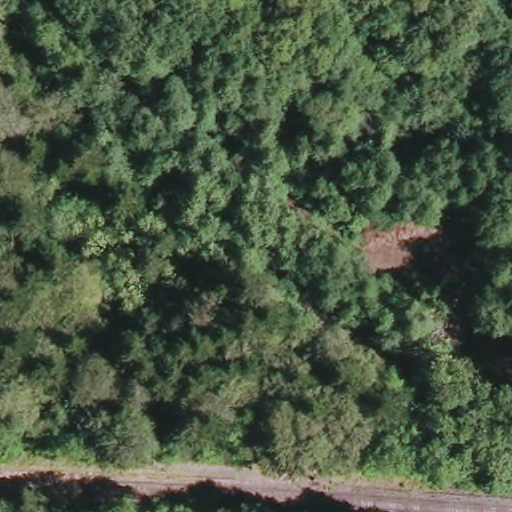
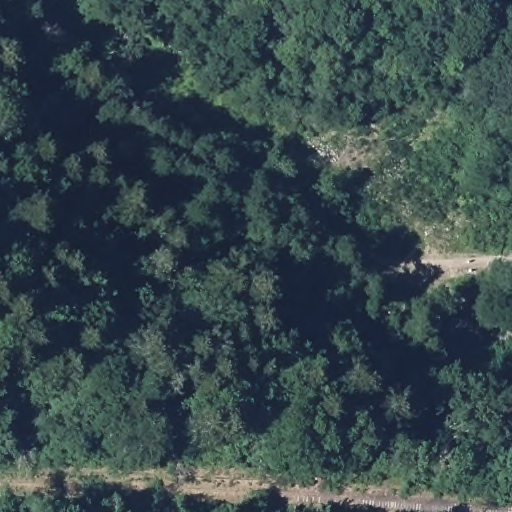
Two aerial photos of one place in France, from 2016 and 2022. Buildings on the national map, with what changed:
[]

